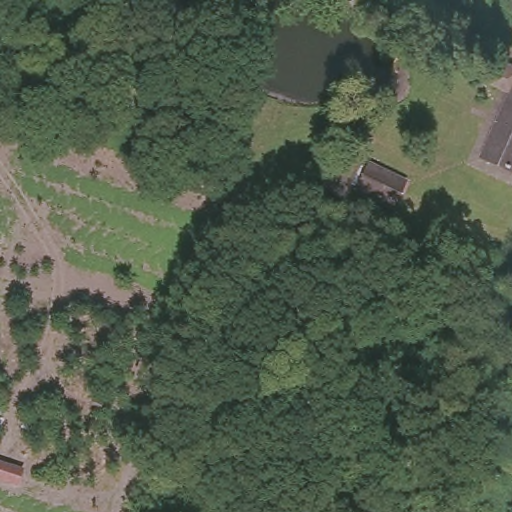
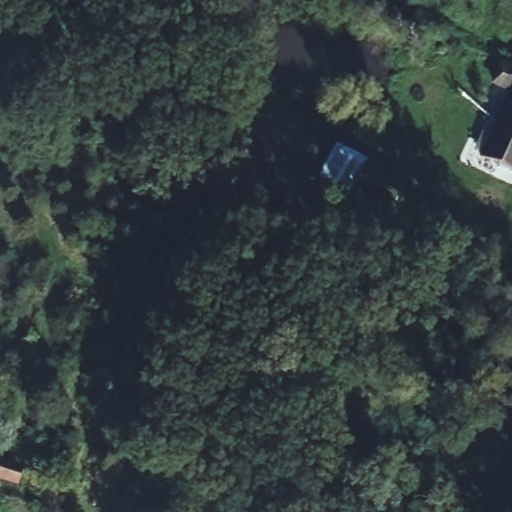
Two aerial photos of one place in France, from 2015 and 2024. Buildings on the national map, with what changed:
unchanged [(485,158),(512,104),(512,171),(485,158)]
unchanged [(402,205),(352,184),(366,153),(417,172),(402,205)]

